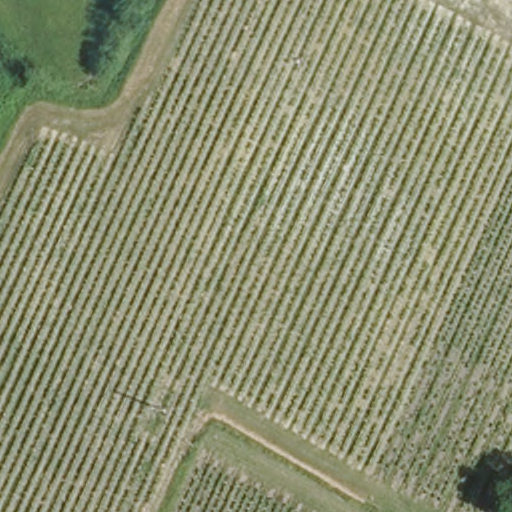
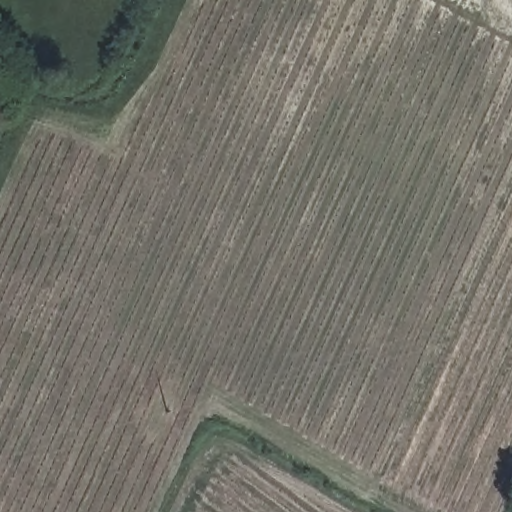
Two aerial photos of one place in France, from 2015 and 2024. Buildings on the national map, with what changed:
[]

